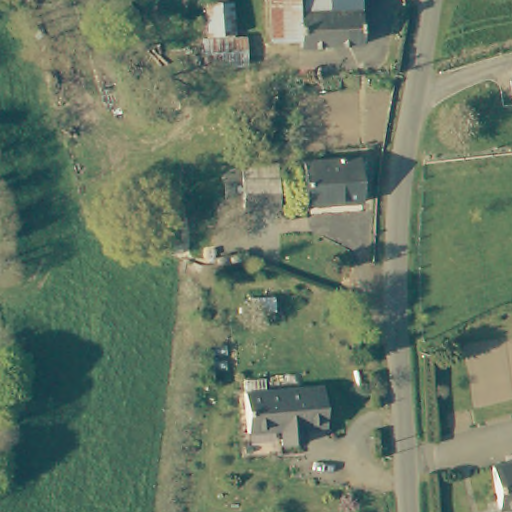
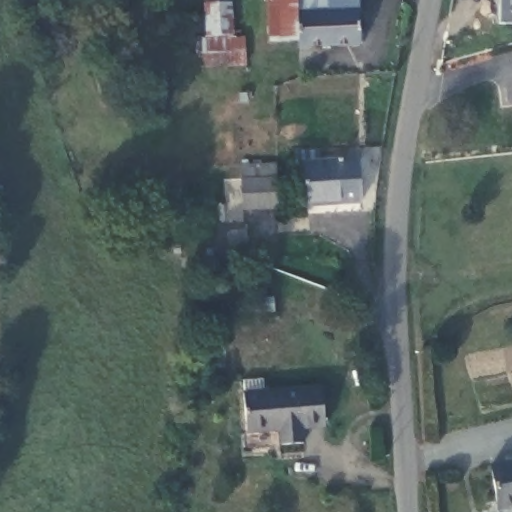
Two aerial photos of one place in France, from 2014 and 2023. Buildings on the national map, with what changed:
unchanged [(297,37),(267,39),(266,0),(296,0),(297,37)]
unchanged [(325,40),(297,42),(297,37),(296,0),(324,0),(325,40)]
unchanged [(357,38),(325,40),(324,0),(356,0),(357,38)]
new [(500,0),(512,0),(512,24),(500,24),(500,0)]
unchanged [(206,49),(204,13),(220,12),(227,12),(230,48),(222,49),(206,49)]
unchanged [(347,149),(359,192),(332,199),(314,203),(303,159),(332,152),(347,149)]
unchanged [(237,201),(237,161),(275,160),(277,199),(237,201)]
unchanged [(321,387),(324,428),(302,430),(304,445),(282,447),(280,432),(247,435),(242,393),(321,387)]
unchanged [(512,506),(496,508),(490,464),(512,461),(512,506)]

